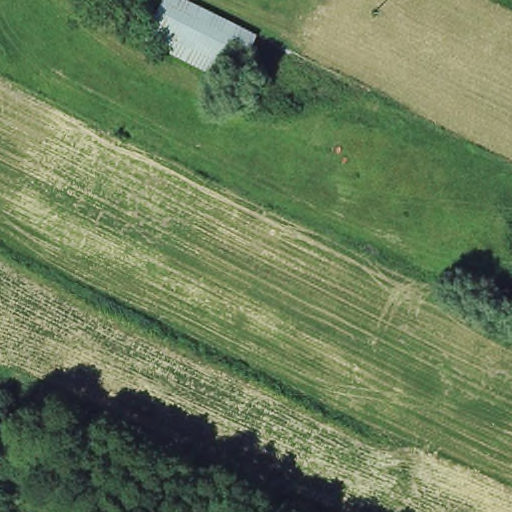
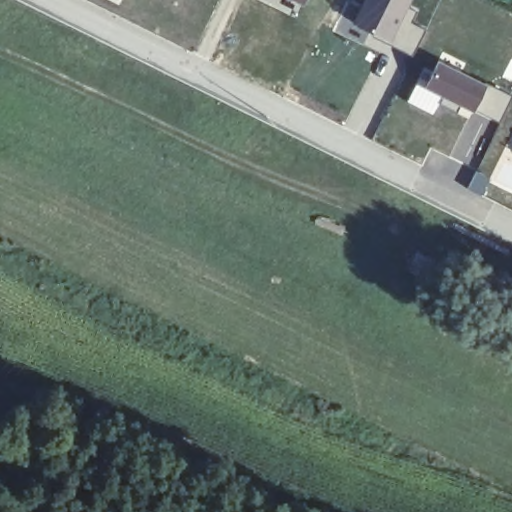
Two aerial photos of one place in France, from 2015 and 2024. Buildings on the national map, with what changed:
new [(304,10),(283,0),(309,0),(304,10)]
new [(407,5),(418,11),(412,22),(426,29),(413,56),(388,45),(352,22),(364,0),(410,0),(407,5)]
new [(512,101),(501,125),(478,112),(475,120),(418,92),(435,55),(512,95),(512,101)]

